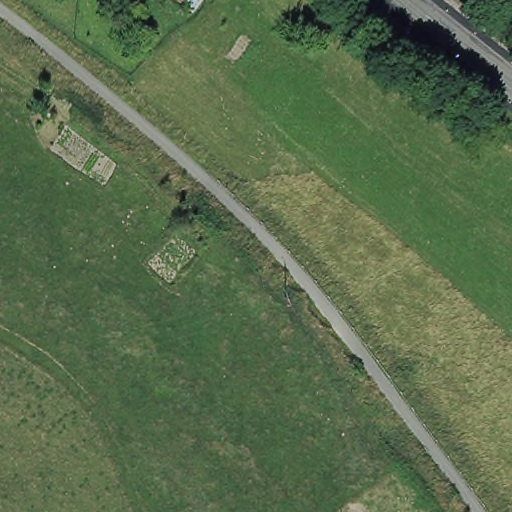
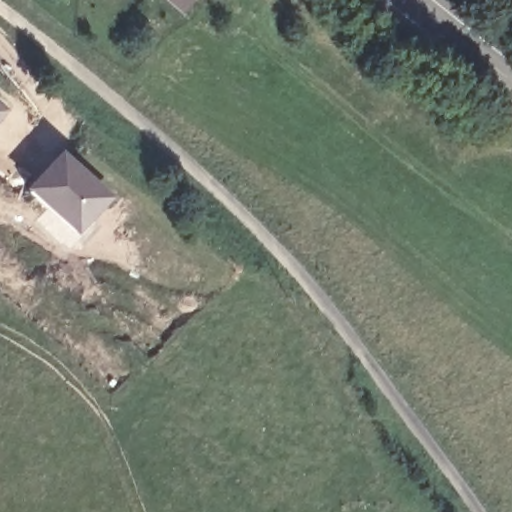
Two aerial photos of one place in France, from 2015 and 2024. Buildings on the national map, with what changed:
new [(7,109),(0,118),(0,103),(7,109)]
new [(111,195),(80,234),(28,187),(61,150),(111,195)]

